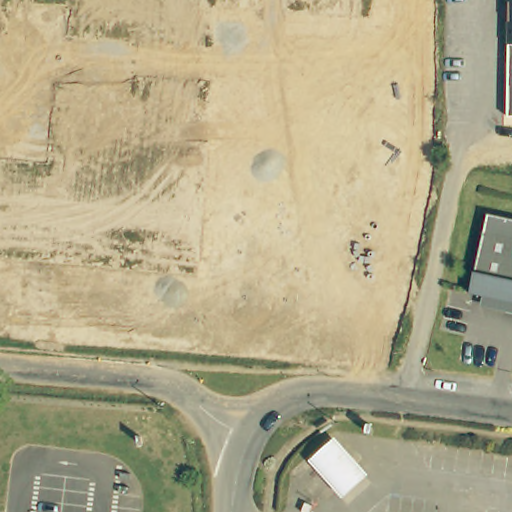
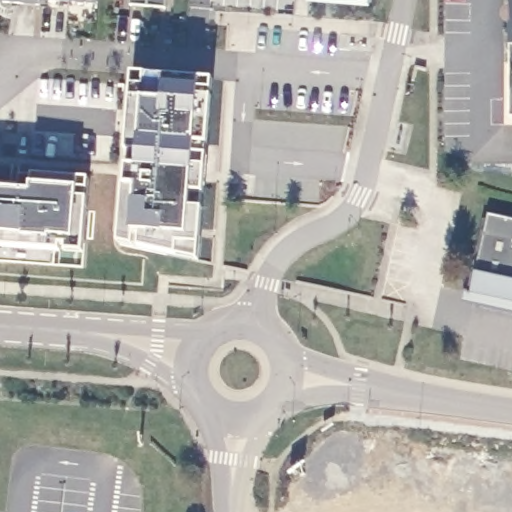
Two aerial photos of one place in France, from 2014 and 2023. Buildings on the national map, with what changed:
new [(39,5),(22,4),(0,3),(0,0),(39,0),(39,5)]
new [(97,4),(45,0),(97,0),(97,4)]
new [(166,7),(131,5),(131,0),(166,0),(166,7)]
new [(366,5),(308,0),(367,0),(366,5)]
unchanged [(511,0),(512,0),(512,48),(511,48),(511,0)]
unchanged [(512,48),(512,65),(511,65),(511,48),(512,48)]
new [(199,261),(120,244),(132,73),(212,80),(199,261)]
unchanged [(511,121),(511,105),(512,105),(512,121),(511,121)]
new [(0,246),(0,190),(32,192),(32,186),(34,175),(89,179),(82,253),(0,246)]
unchanged [(512,221),(512,315),(503,313),(506,303),(468,296),(485,216),(512,221)]
demolished [(339,494),(326,482),(322,487),(307,468),(334,442),(363,473),(339,494)]

